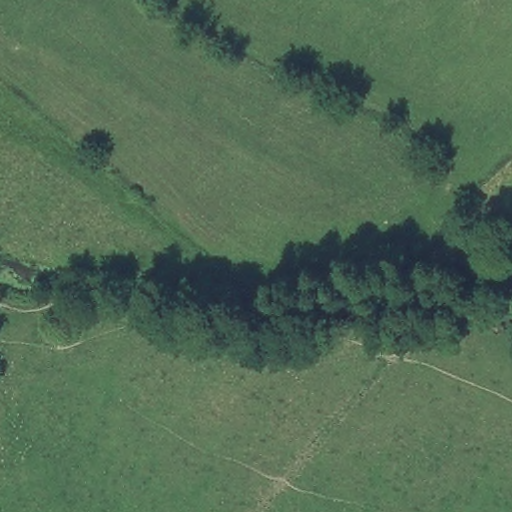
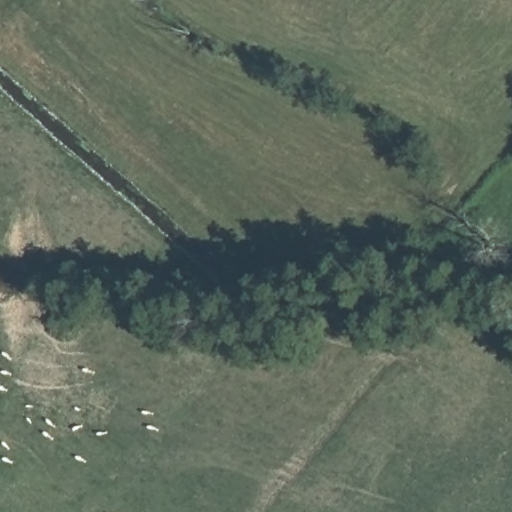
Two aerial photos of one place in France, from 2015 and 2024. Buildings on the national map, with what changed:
unchanged [(46,327),(62,302),(85,316),(68,341),(46,327)]

